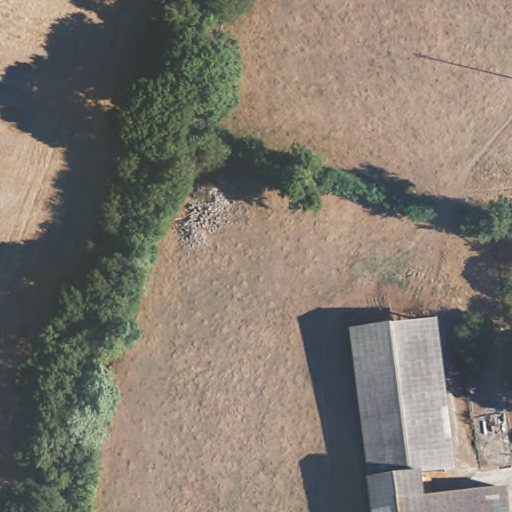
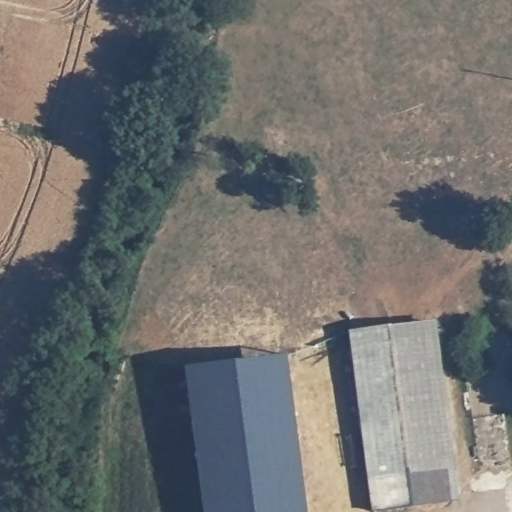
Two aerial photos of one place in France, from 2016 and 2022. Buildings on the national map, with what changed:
unchanged [(390,322),(442,317),(459,471),(422,475),(412,476),(390,322)]
unchanged [(351,324),(390,322),(412,476),(372,480),(351,324)]
new [(186,368),(289,356),(309,512),(206,512),(186,368)]
new [(455,498),(375,511),(372,480),(412,476),(422,475),(447,472),(455,498)]
demolished [(473,492),(476,512),(376,512),(372,480),(412,476),(422,475),(425,497),(473,492)]

